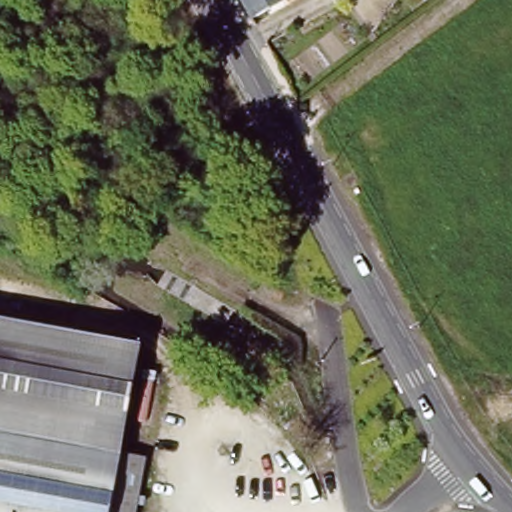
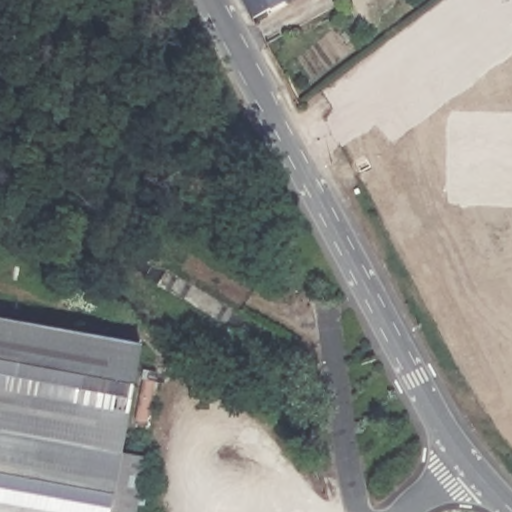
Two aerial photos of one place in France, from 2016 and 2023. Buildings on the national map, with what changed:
unchanged [(253,29),(238,0),(306,0),(256,27),(253,29)]
unchanged [(142,352),(121,462),(147,467),(138,512),(0,512),(0,325),(142,352)]

